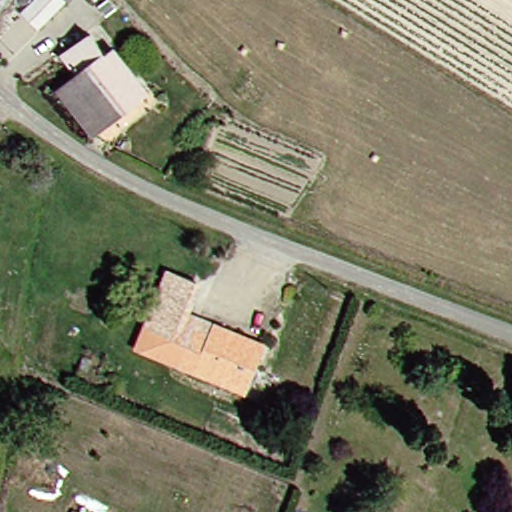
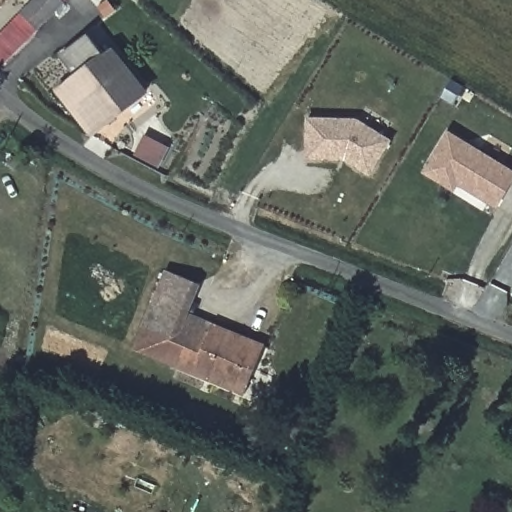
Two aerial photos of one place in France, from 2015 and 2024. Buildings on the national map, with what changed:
new [(32,0),(64,0),(2,64),(0,62),(0,32),(32,0)]
demolished [(34,25),(19,2),(21,0),(63,0),(64,1),(34,25)]
unchanged [(96,131),(62,90),(75,79),(69,70),(76,65),(68,54),(94,32),(109,52),(117,46),(151,88),(96,131)]
new [(359,165),(347,157),(306,157),(307,119),(357,120),(393,140),(379,164),(373,173),(359,165)]
new [(449,132),(511,172),(487,206),(428,167),(449,132)]
unchanged [(177,361),(137,346),(145,327),(168,266),(194,276),(183,305),(196,310),(245,329),(279,342),(275,350),(259,393),(177,361)]
unchanged [(76,507),(88,511),(87,512),(75,512),(76,507)]

